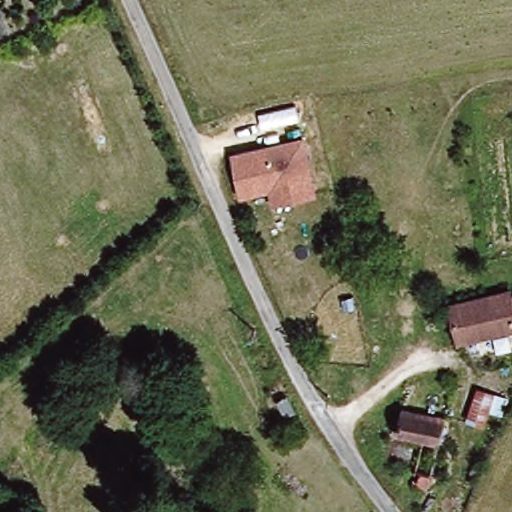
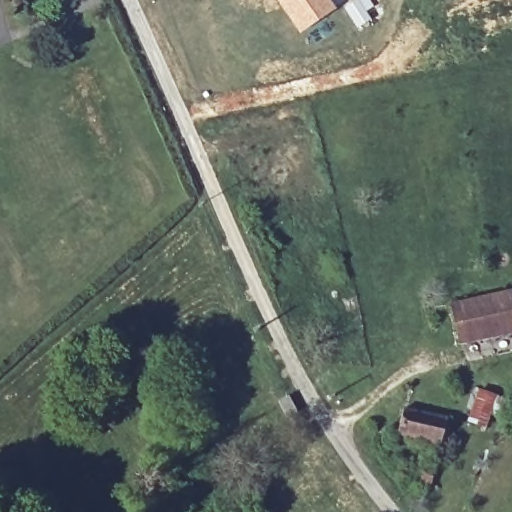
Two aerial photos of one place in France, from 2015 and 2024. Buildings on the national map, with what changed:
new [(298,34),(274,0),(330,0),(336,8),(298,34)]
demolished [(322,198),(272,209),(268,193),(240,200),(232,152),(307,135),(322,198)]
unchanged [(503,296),(503,300),(512,298),(512,328),(510,329),(510,333),(450,344),(442,305),(503,296)]
unchanged [(393,438),(402,407),(420,410),(442,413),(436,449),(393,438)]
unchanged [(426,487),(415,483),(422,456),(435,458),(432,476),(426,487)]

